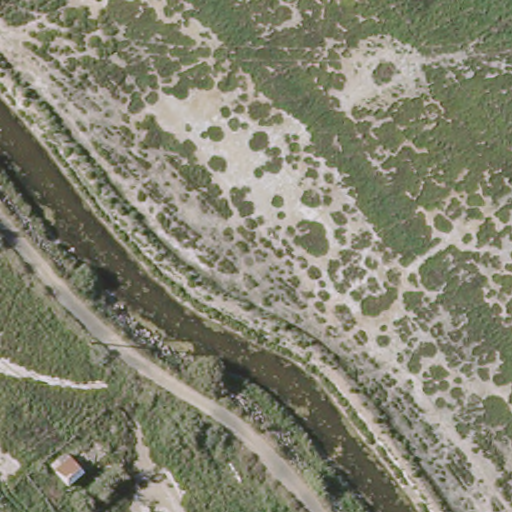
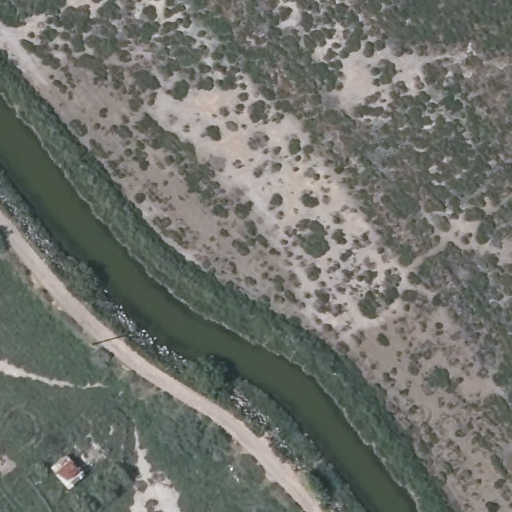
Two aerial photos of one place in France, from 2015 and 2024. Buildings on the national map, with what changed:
unchanged [(106,456),(68,488),(51,468),(67,455),(71,460),(94,441),(106,456)]

